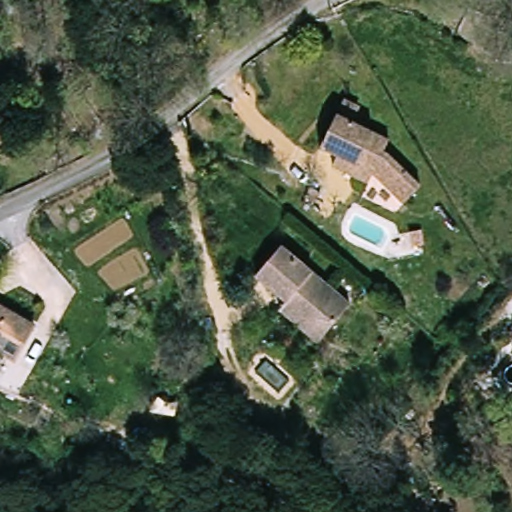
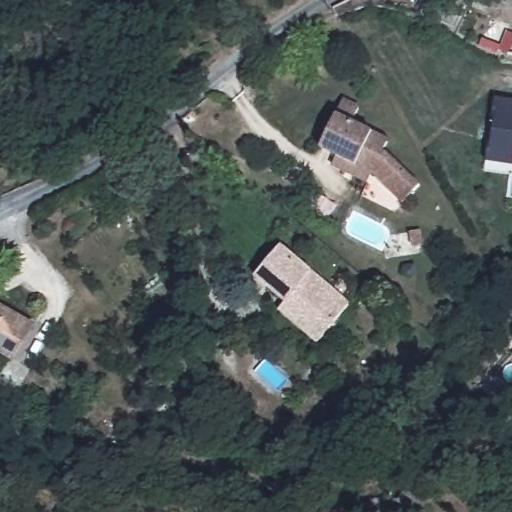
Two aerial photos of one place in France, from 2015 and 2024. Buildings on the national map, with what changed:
new [(512,100),(512,166),(485,161),(493,97),(512,100)]
unchanged [(330,171),(339,158),(321,147),(344,104),(359,111),(352,125),(385,141),(382,150),(421,179),(403,204),(369,176),(363,189),(330,171)]
unchanged [(284,307),(287,303),(255,277),(286,241),(358,306),(335,330),(323,342),(284,307)]
unchanged [(38,318),(28,338),(0,350),(0,300),(38,318)]

